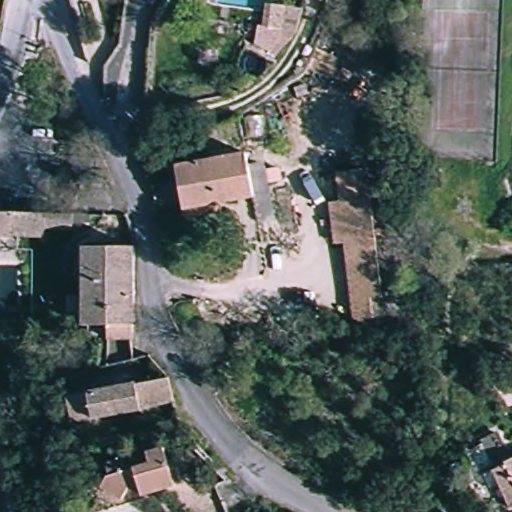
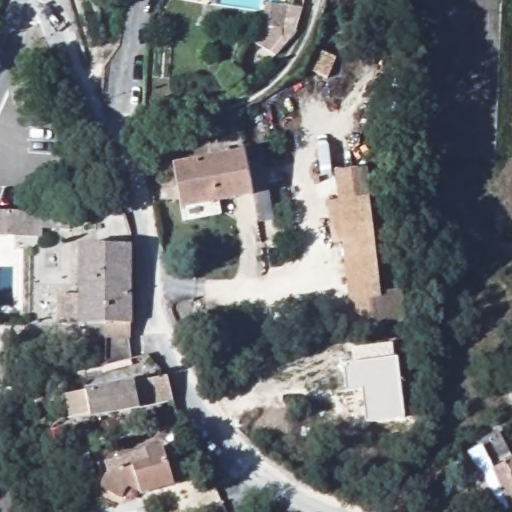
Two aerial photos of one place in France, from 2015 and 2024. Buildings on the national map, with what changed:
unchanged [(263,0),(284,3),(281,33),(280,40),(270,54),(256,50),(258,29),(259,0),(263,0)]
demolished [(328,80),(307,69),(318,48),(338,58),(328,80)]
unchanged [(181,216),(177,184),(175,167),(249,158),(261,156),(273,221),(259,224),(255,197),(220,200),(221,213),(181,216)]
unchanged [(381,296),(400,293),(403,318),(349,322),(339,245),(326,247),(321,200),(335,200),(331,169),(365,166),(381,296)]
unchanged [(8,230),(9,240),(0,240),(0,212),(70,213),(69,229),(8,230)]
unchanged [(80,318),(80,247),(133,248),(133,321),(133,326),(80,326),(80,318)]
new [(405,417),(366,420),(363,389),(346,392),(343,365),(354,364),(353,348),(393,343),(394,359),(398,358),(405,417)]
unchanged [(171,401),(139,410),(93,418),(66,423),(64,395),(84,389),(133,380),(167,375),(171,401)]
unchanged [(183,478),(138,492),(135,485),(123,487),(114,501),(94,494),(101,481),(108,478),(104,463),(163,443),(167,456),(175,453),(183,478)]
unchanged [(506,504),(489,465),(512,456),(512,502),(506,504)]

